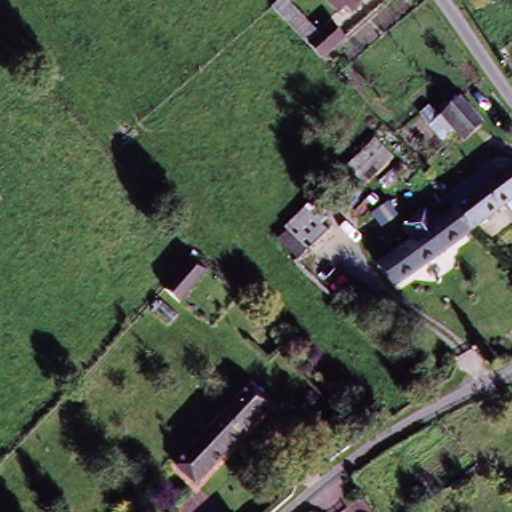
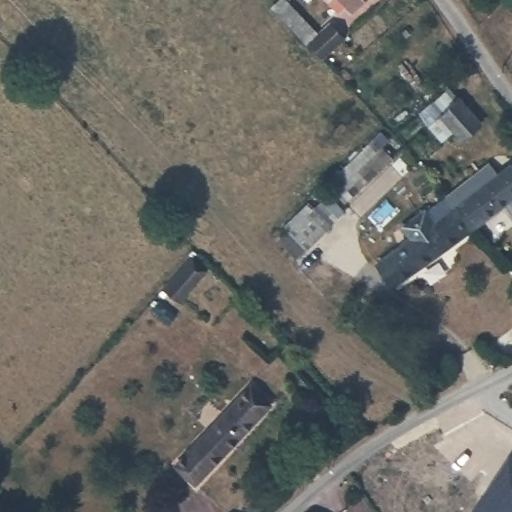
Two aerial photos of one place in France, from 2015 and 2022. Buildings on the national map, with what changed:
unchanged [(327,59),(273,6),(279,0),(292,0),(321,30),(333,21),(351,39),(327,59)]
unchanged [(355,17),(338,0),(371,0),(355,17)]
unchanged [(416,111),(449,85),(481,123),(455,145),(446,136),(440,141),(416,111)]
unchanged [(337,183),(381,135),(400,152),(357,201),(337,183)]
unchanged [(453,202),(448,195),(491,161),(499,172),(512,161),(512,207),(509,203),(476,229),(453,202)]
unchanged [(399,290),(376,262),(410,236),(402,225),(428,206),(435,216),(453,202),(476,229),(399,290)]
unchanged [(299,230),(322,204),(345,223),(322,250),(299,230)]
unchanged [(212,268),(185,301),(167,286),(195,254),(212,268)]
unchanged [(194,483),(174,466),(252,386),(272,406),(194,483)]

